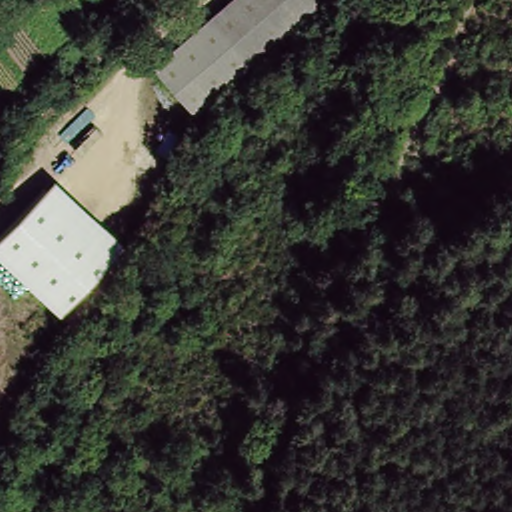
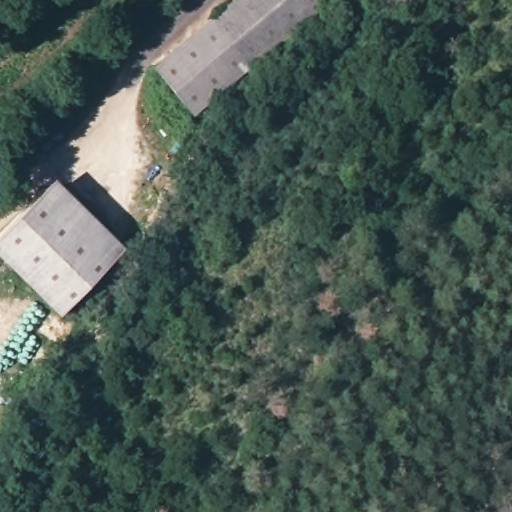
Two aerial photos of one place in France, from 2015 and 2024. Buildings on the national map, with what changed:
unchanged [(195,120),(157,67),(237,0),(341,0),(195,120)]
unchanged [(127,247),(62,316),(0,256),(0,236),(55,178),(127,247)]

